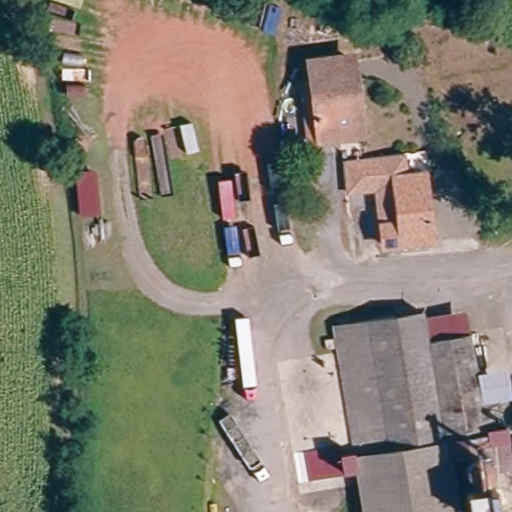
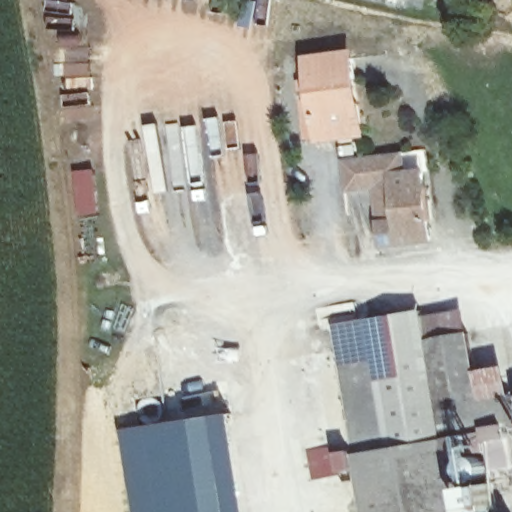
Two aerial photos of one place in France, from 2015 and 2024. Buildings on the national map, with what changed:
new [(318,143),(317,139),(307,140),(299,82),(309,82),(305,57),(357,51),(368,137),(318,143)]
demolished [(304,62),(347,55),(351,77),(344,77),(351,116),(315,122),(304,62)]
unchanged [(430,191),(435,191),(439,222),(434,222),(438,242),(389,249),(381,182),(349,186),(345,165),(381,160),(393,157),(409,155),(411,178),(429,175),(430,191)]
unchanged [(450,452),(448,433),(441,433),(424,310),(462,305),(476,388),(512,385),(512,424),(481,428),(484,448),(450,452)]
unchanged [(451,512),(356,512),(333,321),(424,310),(441,433),(451,512)]
new [(243,498),(245,512),(133,512),(121,428),(228,412),(243,498)]
unchanged [(512,429),(512,461),(504,462),(499,432),(512,429)]
unchanged [(458,512),(456,482),(488,478),(492,508),(466,512),(458,512)]

